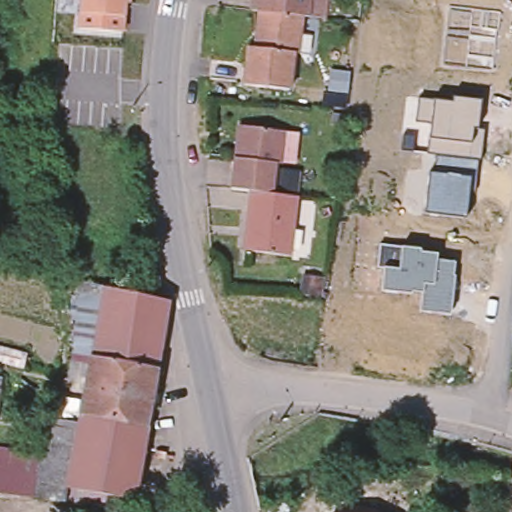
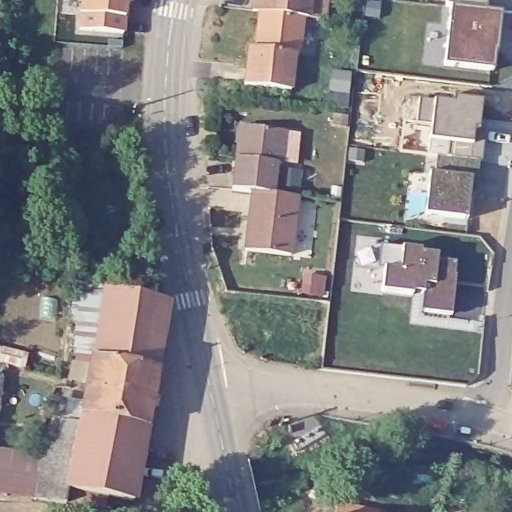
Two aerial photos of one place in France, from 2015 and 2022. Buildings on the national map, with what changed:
unchanged [(81,0),(132,0),(130,20),(124,22),(123,37),(78,32),(81,0)]
unchanged [(314,19),(309,18),(265,13),(257,12),(259,0),(315,0),(314,19)]
new [(454,6),(447,5),(447,0),(487,0),(486,11),(500,13),(494,70),(447,64),(454,6)]
unchanged [(309,18),(302,55),(300,55),(294,92),(249,86),(254,48),(260,49),(265,13),(309,18)]
unchanged [(425,212),(429,172),(435,173),(437,154),(429,153),(430,137),(431,123),(417,121),(420,100),(434,101),(454,103),(454,97),(481,101),(477,128),(484,130),(480,159),(478,159),(475,193),(468,190),(465,218),(425,212)]
unchanged [(276,164),(272,164),(267,194),(248,192),(229,189),(232,158),(237,125),(242,125),(281,131),(276,164)]
unchanged [(304,134),(299,165),(285,164),(284,170),(302,172),(299,198),(292,198),(267,194),(272,164),(276,164),(281,131),(304,134)]
unchanged [(244,224),(248,192),(267,194),(292,198),(285,257),(245,252),(240,251),(244,224)]
unchanged [(420,310),(421,293),(410,292),(410,296),(381,291),(384,268),(378,267),(380,245),(401,247),(420,249),(421,252),(437,254),(436,259),(454,262),(452,276),(455,276),(450,313),(420,310)]
unchanged [(91,339),(74,336),(72,336),(75,318),(68,305),(69,302),(70,297),(75,289),(77,278),(102,284),(91,339)]
unchanged [(136,291),(165,298),(152,365),(89,353),(91,339),(102,284),(136,291)]
unchanged [(89,353),(152,365),(142,423),(77,410),(80,398),(89,353)]
unchanged [(0,422),(0,367),(7,368),(0,422)]
unchanged [(142,423),(129,496),(64,485),(62,497),(31,492),(36,466),(44,449),(50,434),(57,394),(80,398),(77,410),(142,423)]
unchanged [(36,466),(31,492),(0,486),(0,443),(44,449),(36,466)]
unchanged [(404,512),(326,512),(330,494),(405,511),(404,512)]

